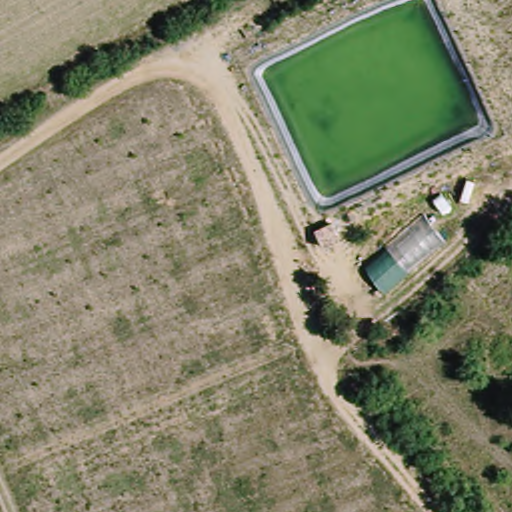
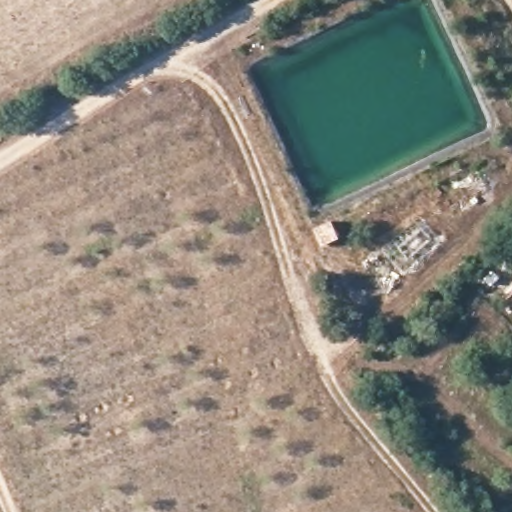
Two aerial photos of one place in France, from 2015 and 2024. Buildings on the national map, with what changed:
unchanged [(365,268),(422,218),(443,241),(384,293),(365,268)]
unchanged [(322,245),(314,229),(331,222),(339,238),(322,245)]

